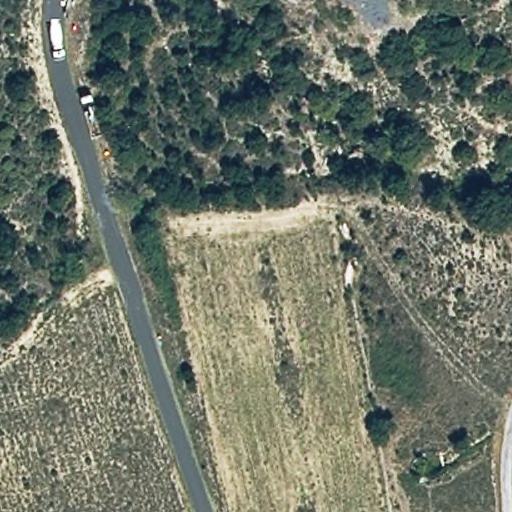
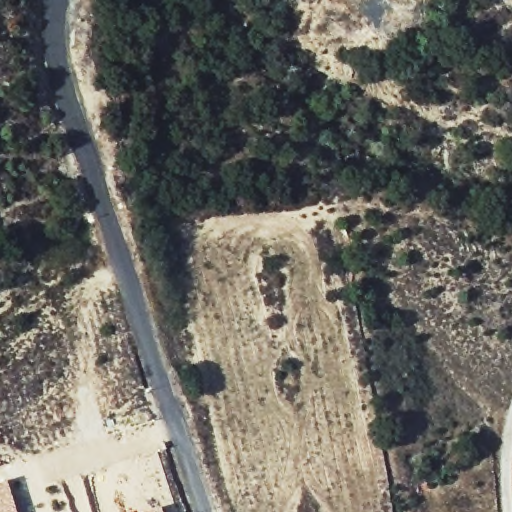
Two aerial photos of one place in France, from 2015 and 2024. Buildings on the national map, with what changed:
new [(5,479),(15,512),(0,512),(0,481),(5,479)]

